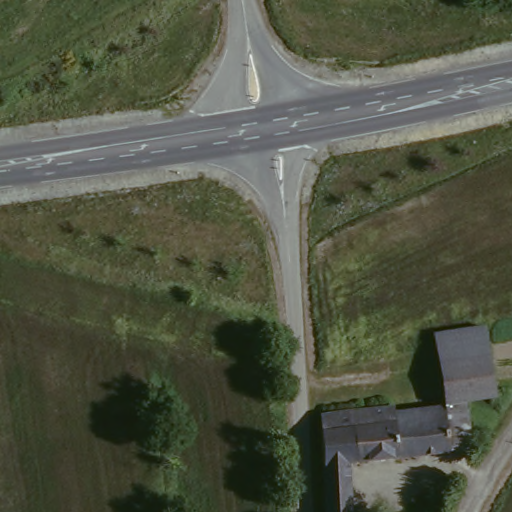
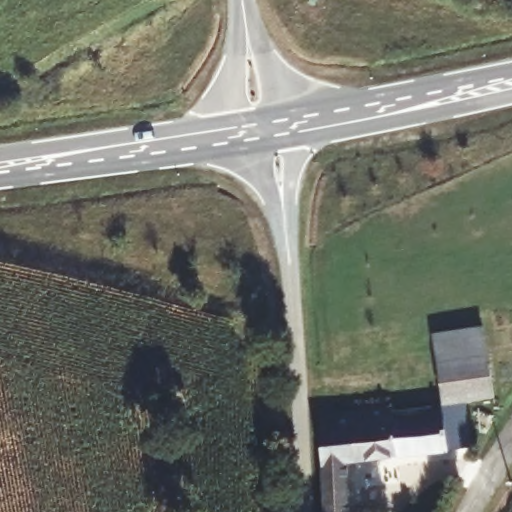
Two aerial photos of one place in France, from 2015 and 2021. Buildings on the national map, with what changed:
unchanged [(489,404),(463,411),(439,416),(425,347),(473,335),(489,404)]
unchanged [(439,416),(463,411),(467,454),(444,457),(439,416)]
unchanged [(321,487),(317,423),(389,419),(389,424),(439,416),(444,457),(345,468),(347,512),(322,512),(321,487)]

